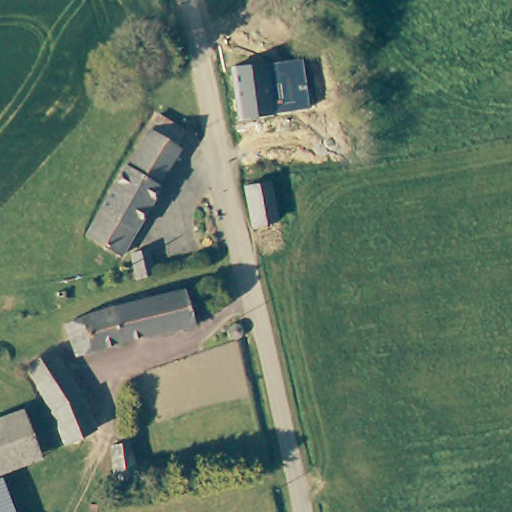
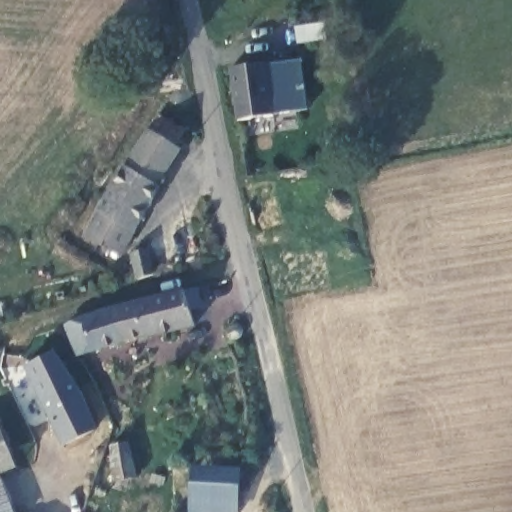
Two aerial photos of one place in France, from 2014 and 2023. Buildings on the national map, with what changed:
unchanged [(301,57),(308,107),(277,111),(269,60),(301,57)]
unchanged [(269,60),(277,111),(242,117),(239,93),(234,64),(269,60)]
unchanged [(164,180),(166,181),(127,249),(94,230),(155,124),(163,110),(189,124),(181,139),(185,142),(164,180)]
unchanged [(246,181),(273,180),(279,219),(255,225),(246,181)]
unchanged [(154,243),(162,267),(146,273),(139,246),(154,243)]
unchanged [(198,300),(188,302),(191,316),(72,347),(63,318),(168,287),(193,280),(198,300)]
demolished [(228,327),(241,320),(244,331),(232,337),(228,327)]
unchanged [(54,349),(85,397),(97,426),(65,437),(28,362),(54,349)]
unchanged [(43,456),(0,472),(0,418),(24,409),(43,456)]
unchanged [(134,488),(114,490),(112,455),(132,454),(134,488)]
new [(190,512),(192,465),(242,468),(239,512),(190,512)]

